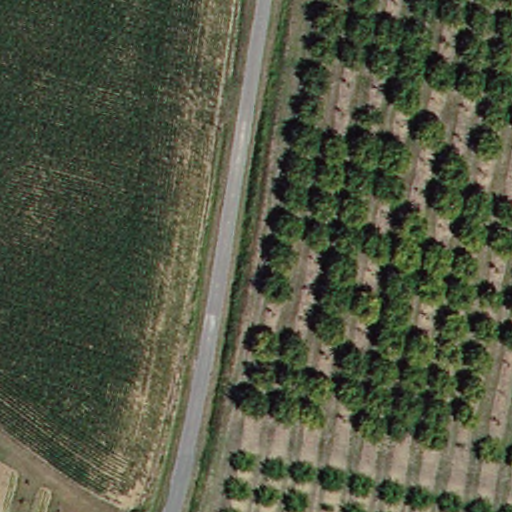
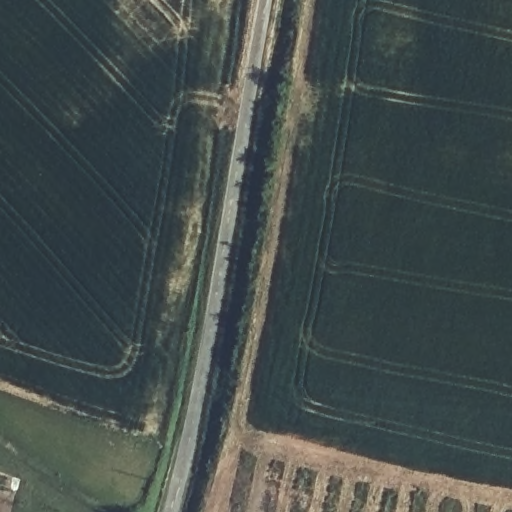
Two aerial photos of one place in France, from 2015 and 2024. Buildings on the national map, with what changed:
[]

